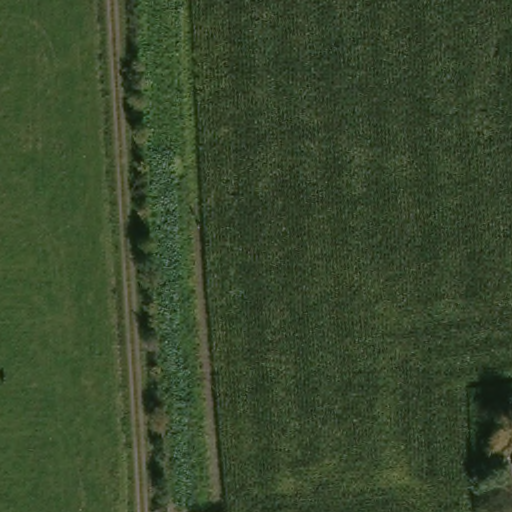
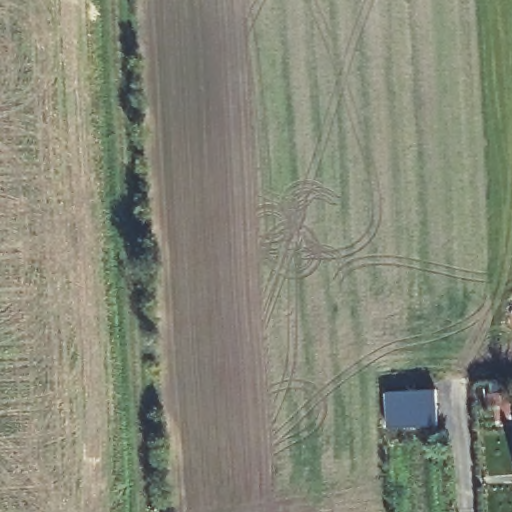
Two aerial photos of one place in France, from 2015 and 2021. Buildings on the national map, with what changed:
new [(435,390),(437,424),(386,426),(385,391),(435,390)]

